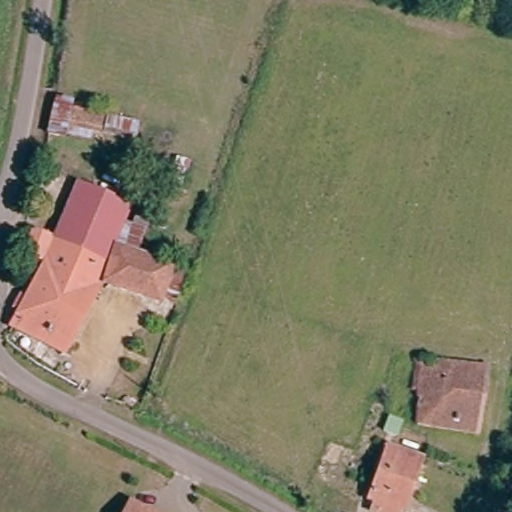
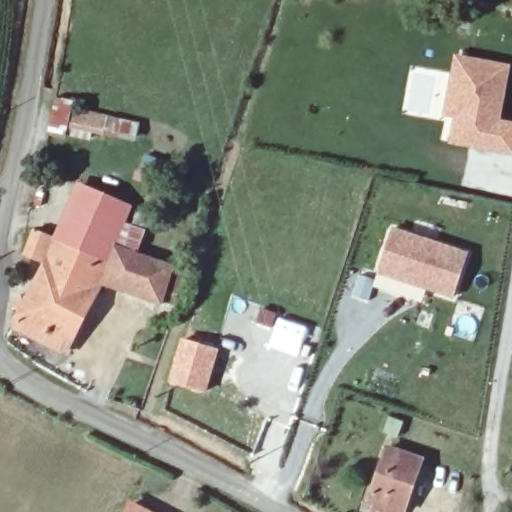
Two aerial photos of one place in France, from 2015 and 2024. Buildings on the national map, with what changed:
new [(511,66),(502,120),(512,122),(512,155),(448,145),(453,119),(443,116),(455,54),(511,66)]
unchanged [(130,124),(126,140),(79,130),(75,136),(56,132),(54,136),(39,130),(45,105),(130,124)]
unchanged [(38,266),(21,255),(34,227),(53,236),(78,181),(130,203),(116,240),(187,267),(178,300),(166,296),(161,305),(104,285),(65,354),(7,325),(38,266)]
new [(467,251),(455,300),(378,275),(393,227),(467,251)]
new [(259,305),(278,313),(277,315),(308,326),(299,356),(268,345),(273,330),(254,322),(259,305)]
new [(180,337),(220,349),(205,393),(166,383),(180,337)]
demolished [(481,368),(481,370),(472,431),(417,420),(418,384),(410,384),(411,362),(411,361),(481,368)]
unchanged [(421,460),(402,511),(397,510),(395,512),(376,512),(373,510),(375,502),(368,498),(387,449),(421,460)]
unchanged [(142,512),(128,512),(131,506),(142,512)]

